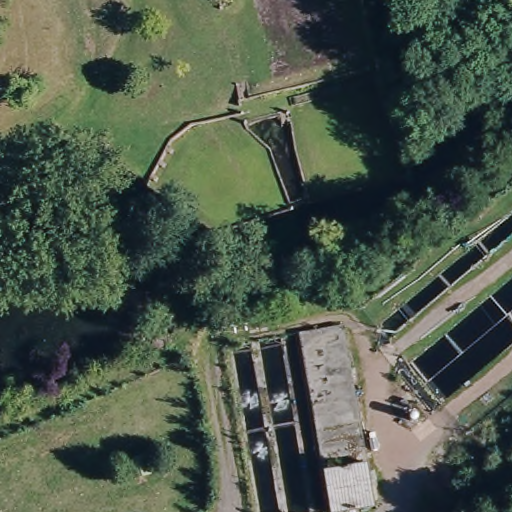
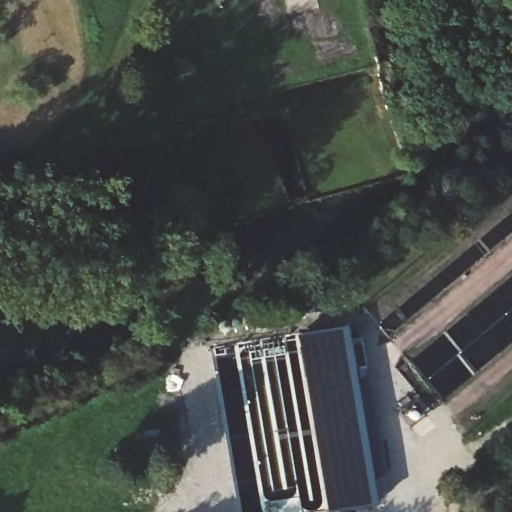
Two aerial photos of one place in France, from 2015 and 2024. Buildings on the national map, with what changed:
unchanged [(341,325),(373,507),(346,512),(329,512),(299,333),(341,325)]

